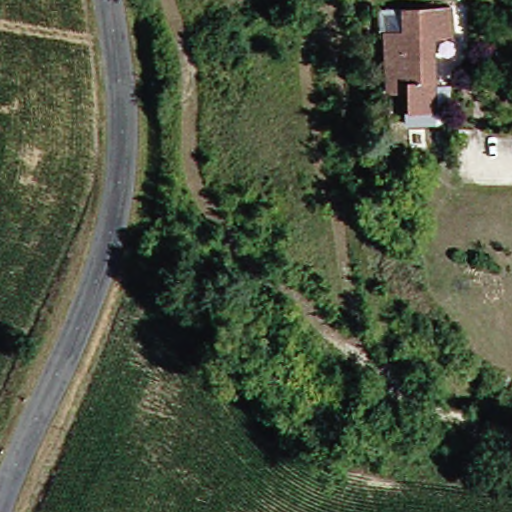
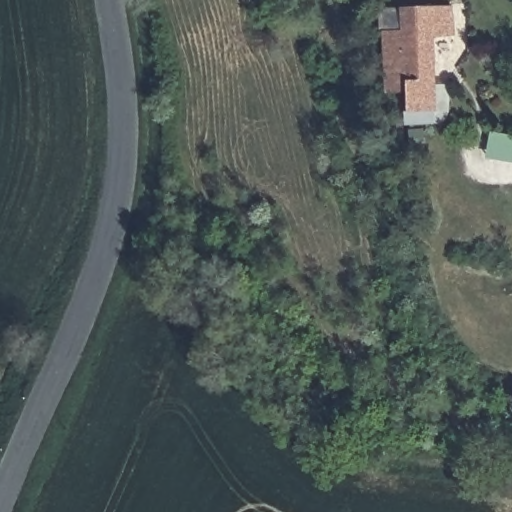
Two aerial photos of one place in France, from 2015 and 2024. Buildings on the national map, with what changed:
unchanged [(446,6),(448,34),(429,34),(429,38),(431,110),(402,112),(401,88),(382,89),(380,32),(378,12),(381,12),(397,11),(397,7),(446,6)]
unchanged [(426,146),(410,147),(408,128),(425,127),(426,146)]

